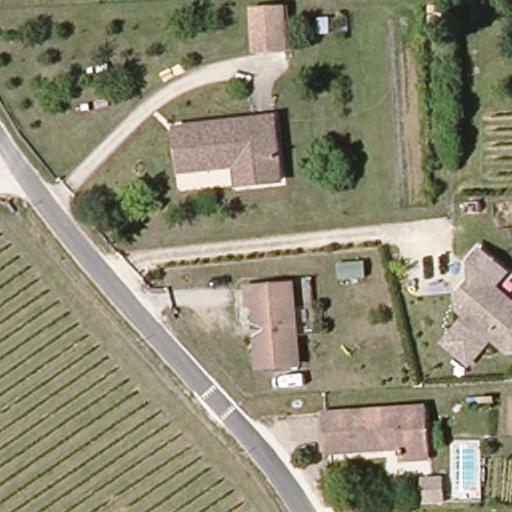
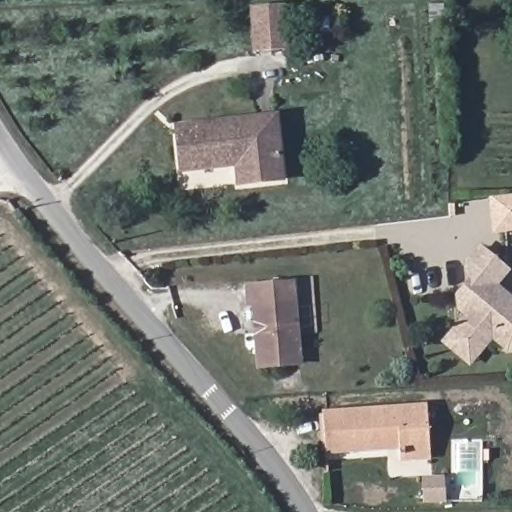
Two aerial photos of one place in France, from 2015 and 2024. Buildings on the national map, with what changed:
unchanged [(281,50),(252,51),(249,6),(278,4),(281,50)]
unchanged [(278,118),(285,181),(242,186),(240,165),(183,171),(178,129),(278,118)]
new [(493,234),(488,198),(512,196),(512,233),(493,234)]
unchanged [(450,345),(459,334),(473,318),(465,312),(464,300),(477,300),(474,265),(487,250),(512,272),(512,274),(501,287),(512,297),(512,351),(496,339),(483,354),(474,365),(450,345)]
unchanged [(258,328),(263,328),(263,320),(258,320),(257,301),(250,302),(249,283),(299,282),(300,364),(260,364),(258,328)]
unchanged [(400,465),(400,456),(400,451),(400,445),(388,446),(389,452),(328,455),(326,415),(427,410),(429,454),(430,463),(400,465)]

